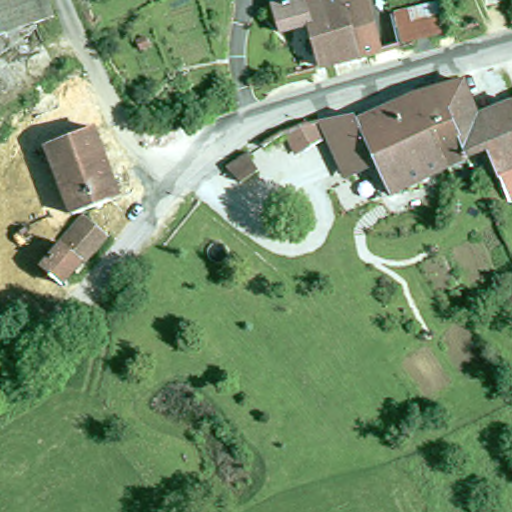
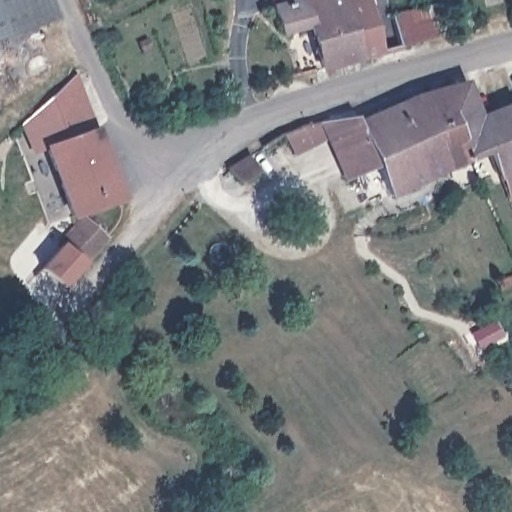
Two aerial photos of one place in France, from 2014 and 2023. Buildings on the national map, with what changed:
unchanged [(0,39),(0,0),(47,0),(54,21),(0,39)]
unchanged [(309,29),(282,36),(273,11),(275,10),(273,0),(370,0),(385,53),(322,69),(309,29)]
unchanged [(452,0),(460,31),(403,47),(394,11),(431,0),(452,0)]
new [(97,128),(52,144),(32,154),(21,124),(77,72),(97,128)]
unchanged [(462,175),(457,166),(392,196),(359,123),(409,100),(464,85),(477,118),(512,104),(512,172),(498,178),(488,153),(472,160),(475,169),(462,175)]
unchanged [(324,121),(355,115),(359,123),(377,164),(348,177),(324,121)]
unchanged [(330,136),(295,155),(285,132),(302,126),(324,121),(330,136)]
unchanged [(124,196),(77,212),(52,144),(102,126),(124,196)]
unchanged [(250,153),(262,169),(242,181),(230,166),(250,153)]
unchanged [(510,205),(498,178),(512,172),(512,204),(510,205)]
unchanged [(48,264),(70,240),(67,237),(89,213),(95,217),(115,232),(93,257),(89,255),(66,280),(48,264)]

